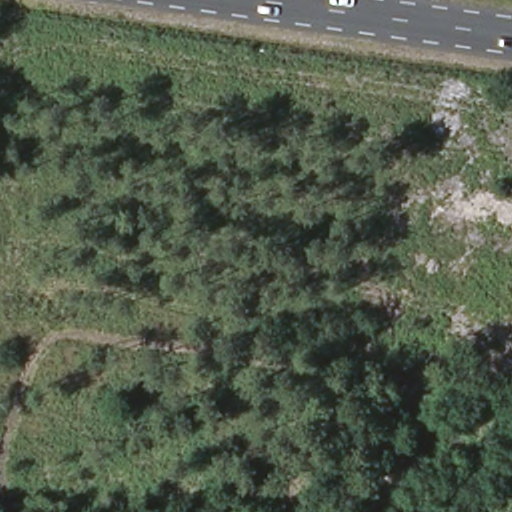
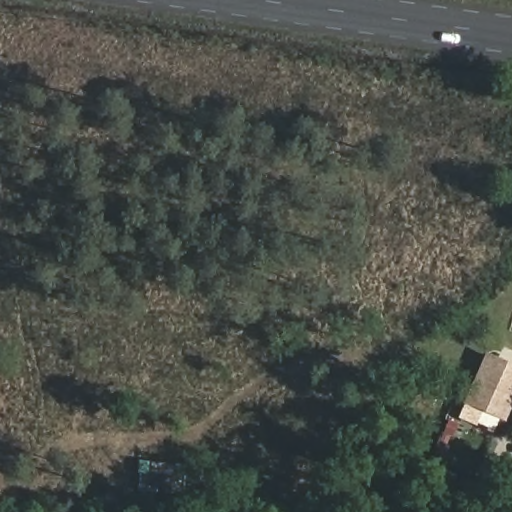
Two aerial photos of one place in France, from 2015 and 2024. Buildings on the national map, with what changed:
new [(462,402),(486,351),(512,362),(512,406),(505,421),(462,402)]

